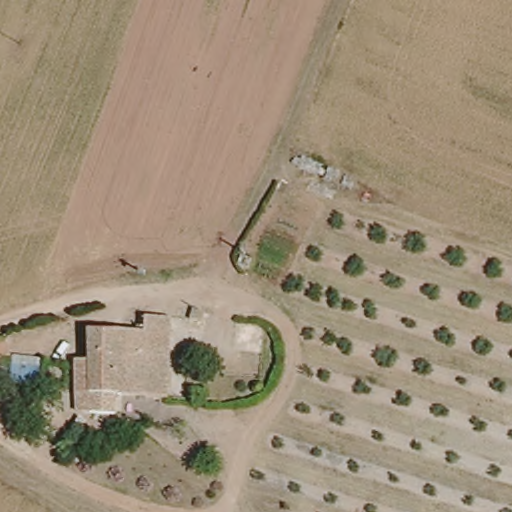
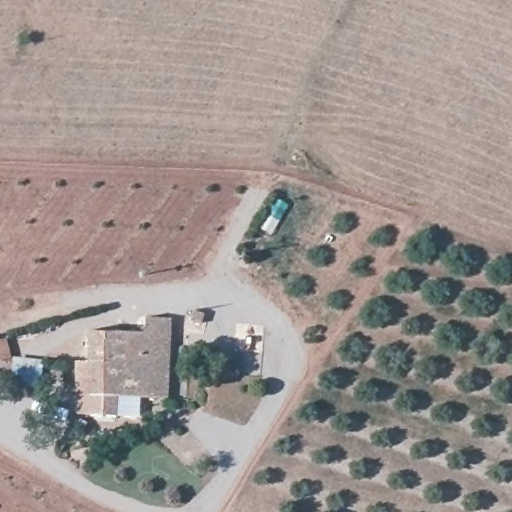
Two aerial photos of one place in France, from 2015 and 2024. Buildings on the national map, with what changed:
unchanged [(144,340),(145,325),(170,324),(166,404),(116,401),(120,338),(144,340)]
unchanged [(79,400),(77,367),(90,366),(89,336),(120,338),(116,401),(115,421),(92,420),(80,419),(79,400)]
unchanged [(37,387),(10,384),(13,360),(40,363),(37,387)]

